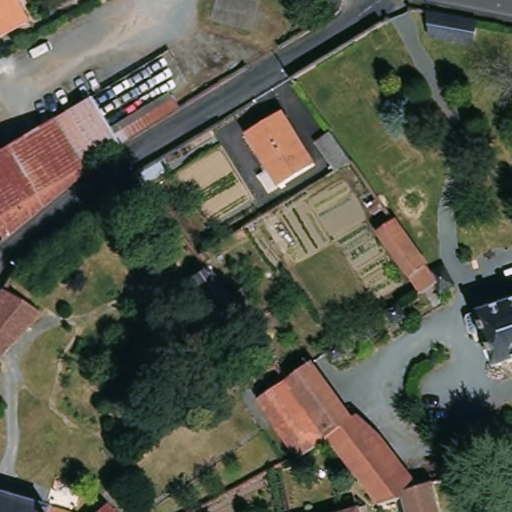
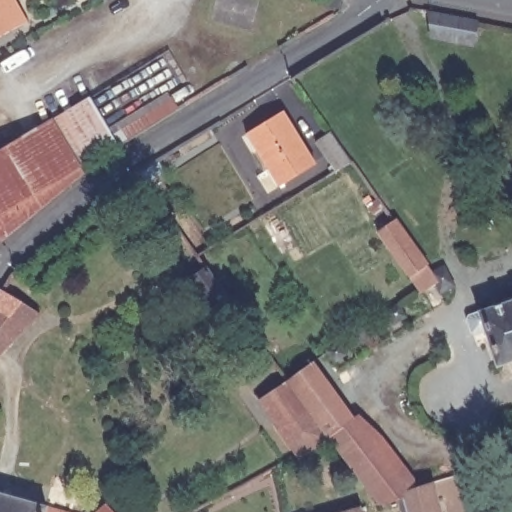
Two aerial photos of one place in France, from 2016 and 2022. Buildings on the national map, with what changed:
unchanged [(31,20),(0,37),(0,0),(20,0),(31,20)]
unchanged [(343,5),(324,2),(324,0),(343,0),(343,5)]
unchanged [(481,22),(476,46),(435,37),(431,12),(481,22)]
unchanged [(106,128),(166,91),(177,110),(117,146),(115,143),(106,128)]
unchanged [(83,174),(24,222),(1,242),(0,241),(0,150),(86,97),(106,128),(115,143),(78,167),(83,174)]
unchanged [(283,110),(317,165),(280,187),(247,133),(283,110)]
unchanged [(333,173),(315,143),(331,133),(332,135),(349,159),(352,162),(333,173)]
unchanged [(374,194),(381,204),(380,204),(373,209),(372,209),(368,203),(367,202),(366,200),(374,194)]
unchanged [(359,225),(358,223),(358,222),(358,220),(360,217),(362,215),(365,215),(368,216),(370,218),(371,219),(372,220),(372,223),(371,226),(369,228),(366,229),(363,229),(361,228),(359,225)]
unchanged [(380,236),(379,234),(375,229),(373,227),(385,219),(386,218),(389,215),(407,240),(409,242),(416,252),(421,258),(428,268),(435,264),(446,279),(447,280),(436,288),(435,289),(429,281),(417,287),(416,285),(380,236)]
unchanged [(212,310),(190,279),(206,267),(229,298),(212,310)]
unchanged [(31,310),(0,342),(0,287),(34,307),(31,310)]
unchanged [(512,300),(512,360),(493,366),(475,312),(512,300)]
unchanged [(393,308),(399,304),(408,317),(397,325),(388,312),(393,308)]
unchanged [(341,344),(351,356),(338,365),(329,352),(341,344)]
unchanged [(288,380),(314,362),(316,365),(355,419),(358,417),(411,487),(401,490),(404,500),(379,506),(337,449),(329,437),(288,380)]
unchanged [(302,458),(262,398),(284,383),(288,380),(329,437),(319,445),(302,458)]
unchanged [(401,490),(411,487),(433,481),(442,512),(408,512),(404,500),(401,490)]
unchanged [(0,512),(0,491),(73,512),(0,512)]
unchanged [(121,512),(95,512),(109,500),(121,512)]
unchanged [(365,512),(356,512),(364,510),(365,512)]

